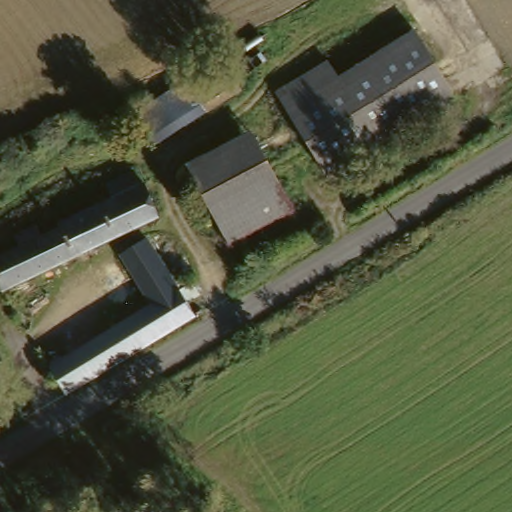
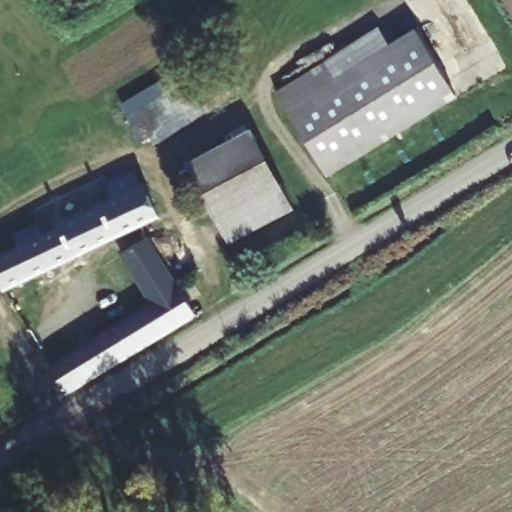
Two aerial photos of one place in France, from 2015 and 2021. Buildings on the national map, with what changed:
unchanged [(336,177),(315,141),(288,95),(286,93),(338,61),(349,78),(425,30),(466,96),(361,161),(349,169),(336,177)]
unchanged [(243,50),(261,79),(237,93),(230,97),(161,139),(158,131),(145,137),(131,114),(191,77),(193,81),(222,64),(243,50)]
unchanged [(239,242),(198,164),(261,130),(277,163),(302,208),(239,242)]
unchanged [(122,195),(123,194),(117,181),(144,166),(150,180),(154,179),(168,213),(13,285),(0,258),(0,256),(1,255),(31,242),(26,231),(30,229),(46,222),(52,232),(70,223),(69,220),(122,195)]
unchanged [(162,299),(131,249),(156,234),(206,311),(76,389),(60,362),(162,299)]

